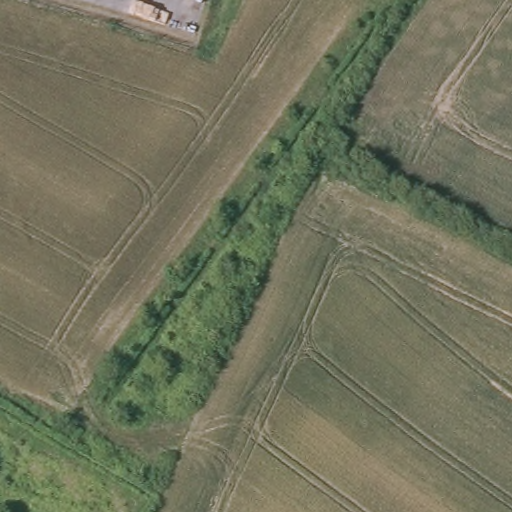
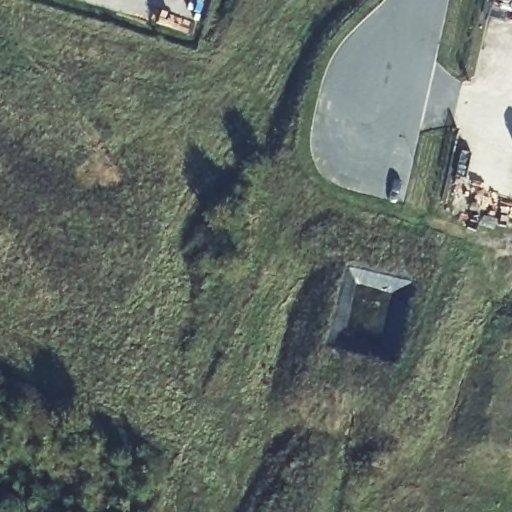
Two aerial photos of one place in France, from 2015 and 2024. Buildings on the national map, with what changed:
[]

